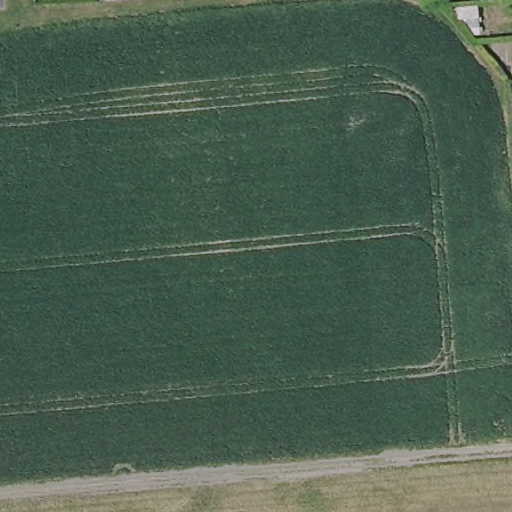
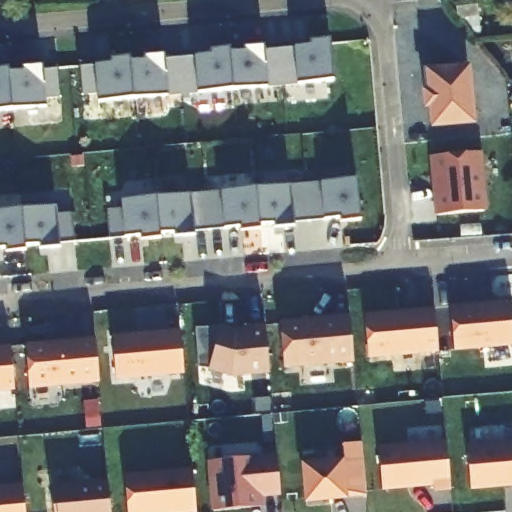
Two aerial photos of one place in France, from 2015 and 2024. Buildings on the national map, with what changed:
new [(96,64),(111,62),(111,59),(130,57),(131,62),(145,60),(145,56),(165,53),(195,49),(196,55),(211,54),(211,50),(230,49),(230,54),(245,52),(245,48),(264,45),(330,39),(333,80),(270,84),(198,91),(168,94),(98,100),(97,89),(82,92),(80,65),(96,64)]
new [(10,71),(25,70),(25,67),(42,65),(43,70),(57,68),(60,95),(45,96),(46,103),(0,108),(0,68),(10,67),(10,71)]
new [(474,126),(431,130),(429,110),(423,110),(423,91),(428,90),(425,69),(470,66),(474,126)]
new [(478,151),(483,210),(440,215),(435,155),(478,151)]
new [(189,194),(221,190),(290,183),(357,175),(361,220),(293,226),(275,227),(275,225),(259,226),(259,231),(240,231),(240,227),(225,229),(194,230),(195,235),(175,237),(175,234),(160,235),(160,239),(141,240),(140,235),(109,238),(107,210),(121,210),(121,200),(189,194)]
new [(57,215),(73,212),(76,240),(59,240),(60,246),(40,249),(40,245),(23,248),(24,250),(7,251),(7,246),(0,247),(0,212),(57,206),(57,215)]
new [(511,306),(512,317),(512,350),(453,356),(449,312),(511,306)]
new [(433,313),(437,357),(367,363),(363,320),(433,313)]
new [(348,322),(352,366),(283,373),(279,328),(348,322)]
new [(220,332),(235,336),(246,336),(246,332),(264,331),(268,378),(230,381),(207,375),(220,332)]
new [(179,335),(182,379),(115,385),(111,340),(179,335)]
new [(94,343),(98,387),(28,393),(24,350),(94,343)]
new [(13,395),(0,396),(0,352),(10,351),(13,395)]
new [(471,488),(467,445),(512,440),(512,484),(471,488)]
new [(445,446),(445,447),(450,496),(432,497),(432,491),(381,495),(377,452),(445,446)]
new [(275,462),(278,499),(260,501),(260,508),(248,510),(248,512),(212,512),(207,466),(275,460),(275,462)]
new [(341,466),(345,503),(305,507),(301,470),(341,466)]
new [(192,491),(194,512),(126,512),(123,480),(191,474),(192,491)]
new [(109,512),(52,512),(50,491),(106,486),(109,512)]
new [(23,512),(0,512),(0,491),(21,490),(23,512)]

